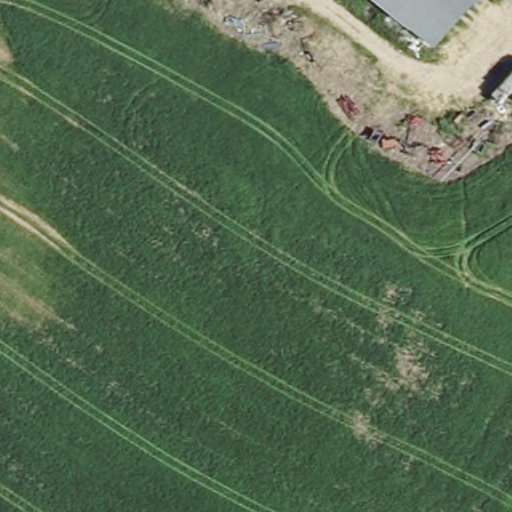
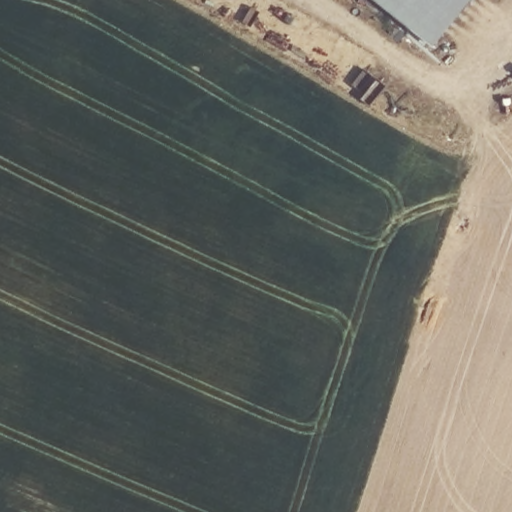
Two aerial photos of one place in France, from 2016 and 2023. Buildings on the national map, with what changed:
unchanged [(430,45),(374,0),(466,0),(430,45)]

